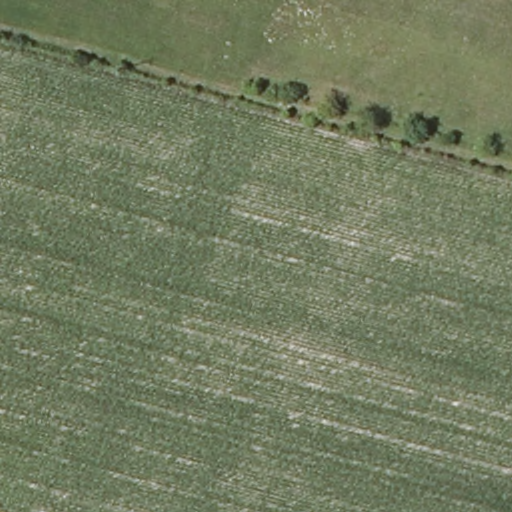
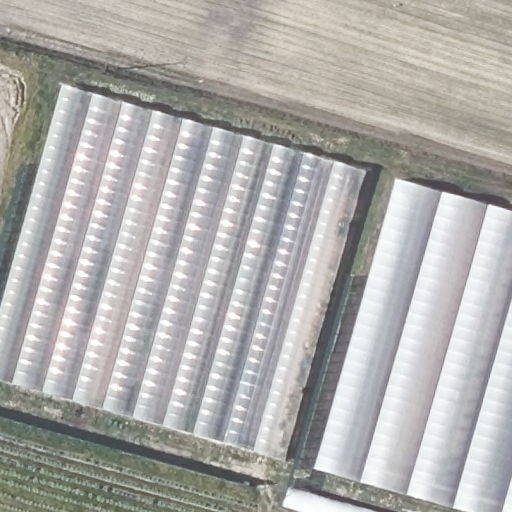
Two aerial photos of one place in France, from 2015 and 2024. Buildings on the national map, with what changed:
new [(0,381),(0,327),(69,88),(369,173),(290,461),(0,381)]
new [(512,210),(512,512),(470,512),(317,471),(396,178),(512,210)]

